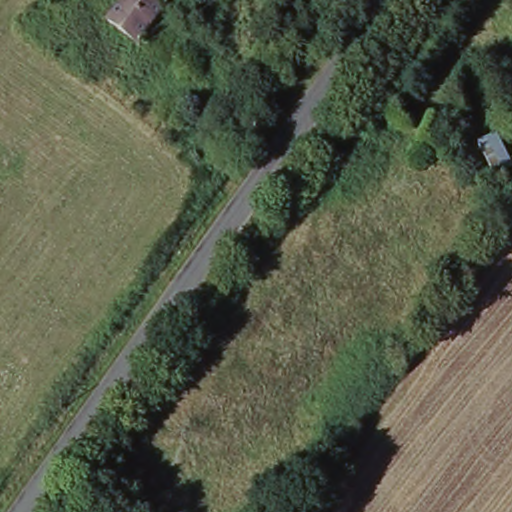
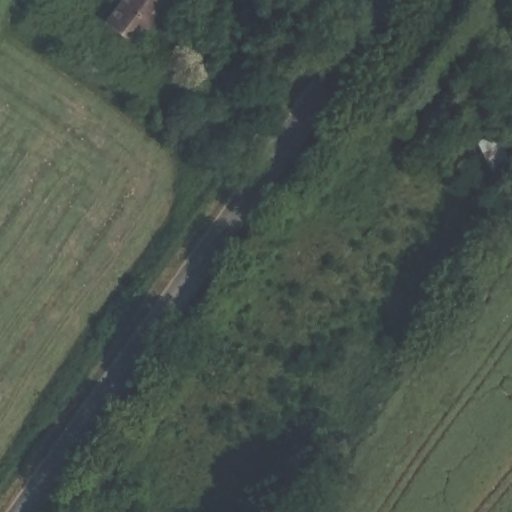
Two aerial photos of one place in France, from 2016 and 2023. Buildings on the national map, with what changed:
unchanged [(134,46),(102,22),(120,0),(169,0),(134,46)]

